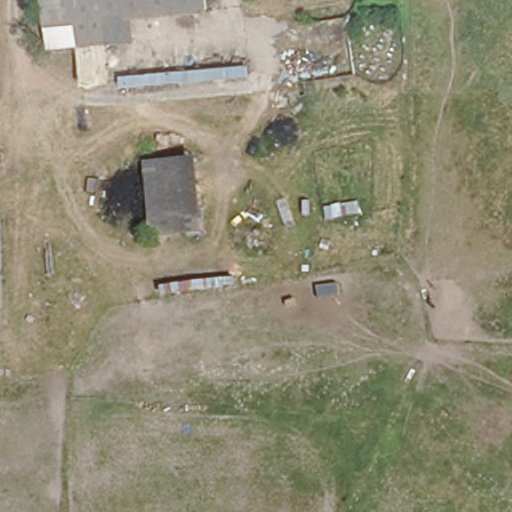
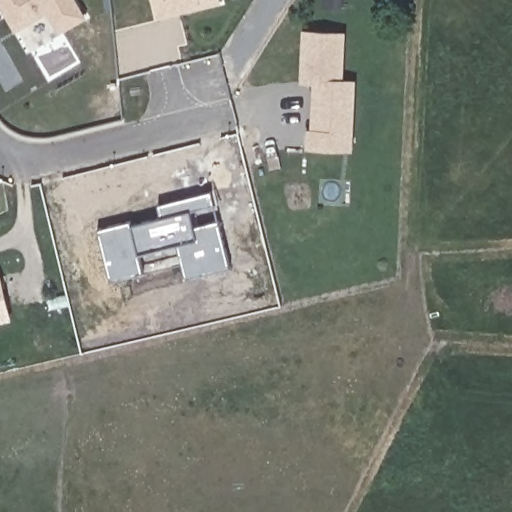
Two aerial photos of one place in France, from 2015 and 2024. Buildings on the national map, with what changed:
new [(56,31),(44,15),(10,32),(0,13),(0,0),(75,0),(83,15),(56,31)]
new [(152,15),(149,0),(214,0),(214,1),(152,15)]
new [(340,30),(340,77),(353,78),(351,150),(301,149),(302,126),(306,126),(307,84),(296,83),(298,29),(340,30)]
demolished [(103,35),(106,76),(75,79),(71,38),(103,35)]
demolished [(197,154),(205,230),(152,239),(142,156),(197,154)]
new [(126,219),(126,223),(156,216),(156,207),(183,201),(188,222),(213,218),(227,266),(182,276),(175,244),(135,251),(140,271),(105,279),(94,226),(126,219)]
new [(8,319),(0,321),(0,282),(8,319)]

